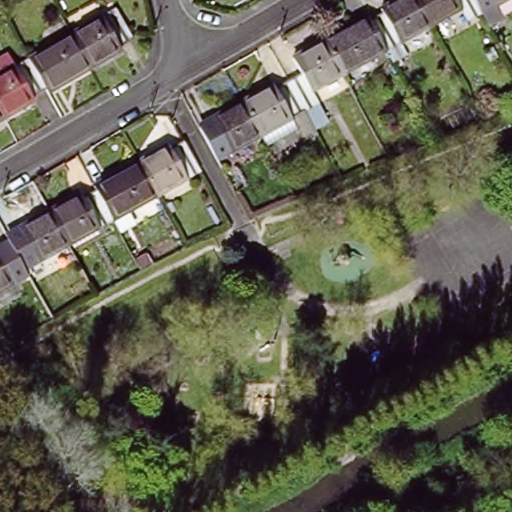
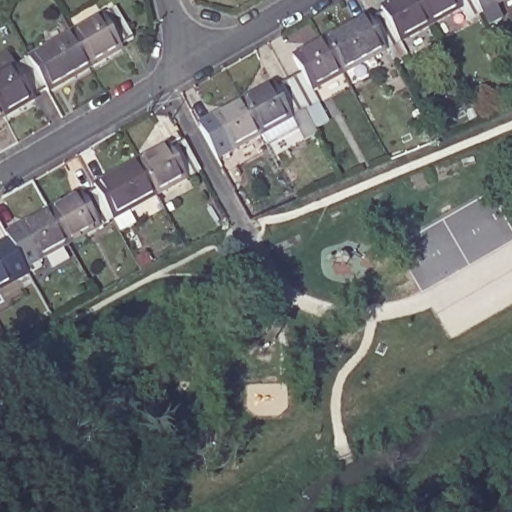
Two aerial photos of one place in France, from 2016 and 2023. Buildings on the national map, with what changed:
unchanged [(379,10),(378,6),(387,0),(415,0),(428,23),(384,47),(367,16),(379,10)]
unchanged [(428,23),(415,0),(473,0),(479,11),(465,19),(457,6),(428,23)]
unchanged [(473,0),(499,0),(479,11),(473,0)]
unchanged [(121,46),(92,63),(73,31),(117,6),(134,35),(119,44),(121,46)]
unchanged [(367,16),(384,47),(339,72),(320,37),(364,12),(367,16)]
unchanged [(45,86),(28,56),(73,31),(92,63),(48,89),(45,86)]
unchanged [(312,101),(302,107),(284,76),(296,69),(288,55),(320,37),(339,72),(306,90),(312,101)]
unchanged [(0,105),(0,54),(8,50),(16,63),(28,56),(45,86),(33,93),(34,96),(13,109),(5,114),(0,105)]
unchanged [(293,127),(263,144),(256,133),(237,98),(268,80),(270,84),(284,76),(302,107),(286,116),(293,127)]
unchanged [(209,118),(208,115),(237,98),(256,133),(213,158),(208,150),(195,126),(209,118)]
unchanged [(0,116),(0,105),(5,114),(0,116)]
unchanged [(172,146),(186,138),(204,171),(161,195),(141,161),(171,144),(172,146)]
unchanged [(161,195),(118,219),(99,188),(98,185),(141,161),(161,195)]
unchanged [(54,210),(83,193),(84,197),(99,188),(118,219),(73,245),(54,210)]
unchanged [(25,226),(54,210),(73,245),(46,260),(48,264),(33,272),(15,242),(30,233),(25,226)]
unchanged [(15,242),(33,272),(0,290),(0,245),(3,249),(15,242)]

